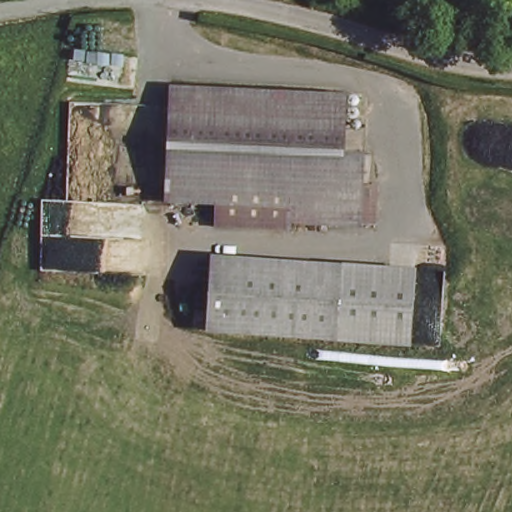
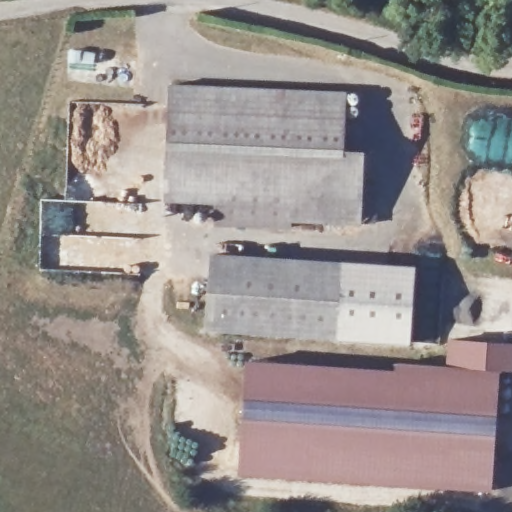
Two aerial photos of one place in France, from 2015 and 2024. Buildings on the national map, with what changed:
unchanged [(168,201),(171,87),(346,93),(344,154),(366,155),(366,181),(382,183),(383,223),(294,223),(293,204),(168,201)]
unchanged [(205,331),(211,254),(417,268),(411,343),(205,331)]
new [(395,362),(445,367),(448,337),(512,342),(512,372),(498,371),(492,491),(239,475),(245,360),(395,369),(395,362)]

